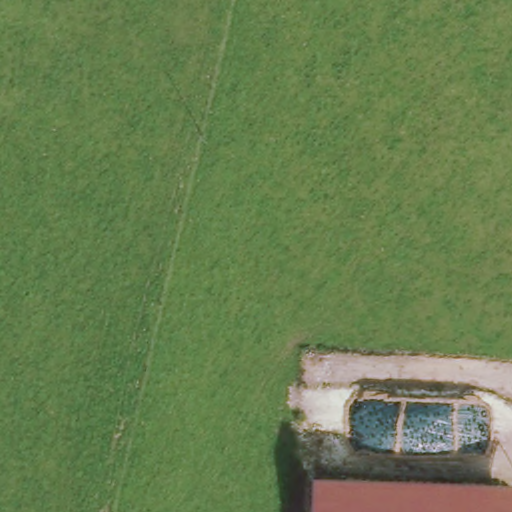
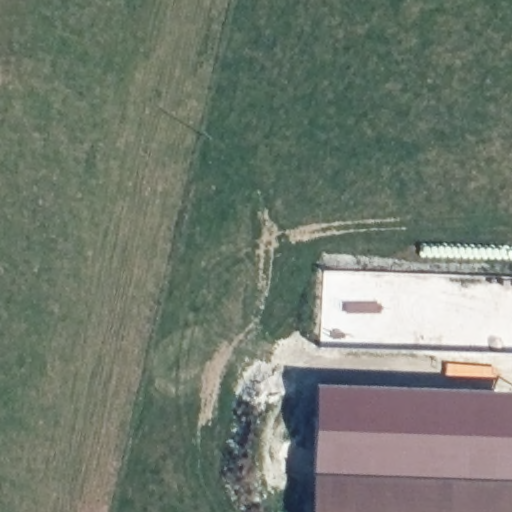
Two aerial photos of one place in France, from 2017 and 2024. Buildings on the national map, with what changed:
new [(432,476),(311,472),(316,385),(512,393),(512,478),(432,476)]
new [(432,476),(430,512),(310,512),(311,472),(432,476)]
new [(512,478),(512,512),(430,512),(432,476),(512,478)]

